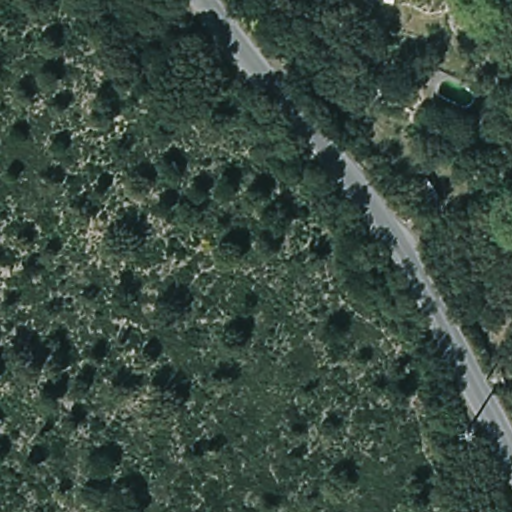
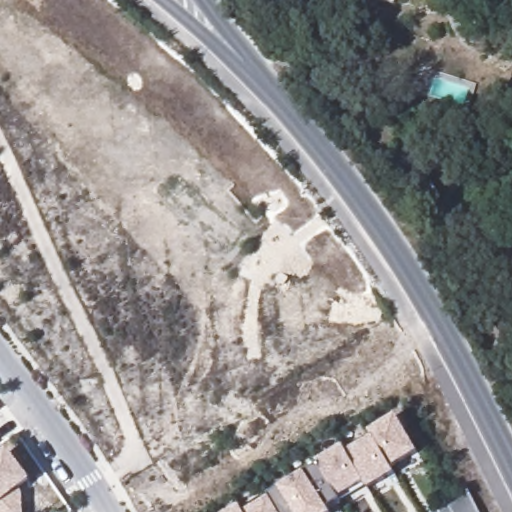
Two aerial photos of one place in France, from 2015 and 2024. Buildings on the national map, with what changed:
unchanged [(416,0),(419,0),(419,1),(416,0)]
new [(270,498),(268,496),(278,488),(304,472),(318,465),(316,462),(343,446),(346,451),(371,437),(368,432),(395,416),(418,452),(390,468),(395,473),(368,490),(364,484),(339,498),(340,500),(327,507),(330,512),(243,512),(270,498)]
new [(32,482),(21,490),(23,512),(0,512),(0,456),(9,450),(32,482)]
new [(240,506),(243,512),(228,512),(240,506)]

